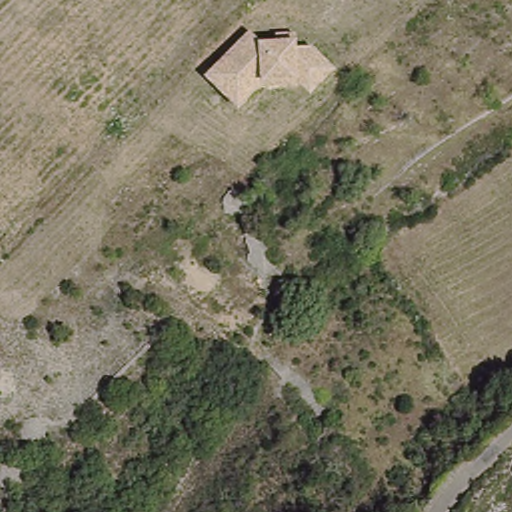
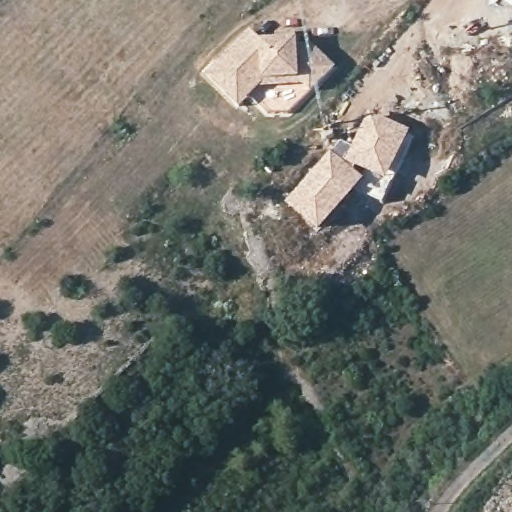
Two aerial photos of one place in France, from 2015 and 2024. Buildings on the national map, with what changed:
unchanged [(254,30),(266,41),(304,39),(305,47),(316,42),(340,70),(315,94),(302,86),(256,90),(242,105),(212,75),(254,30)]
new [(338,140),(351,147),(369,113),(411,131),(388,181),(391,183),(382,204),(357,190),(318,235),(285,204),(338,140)]

